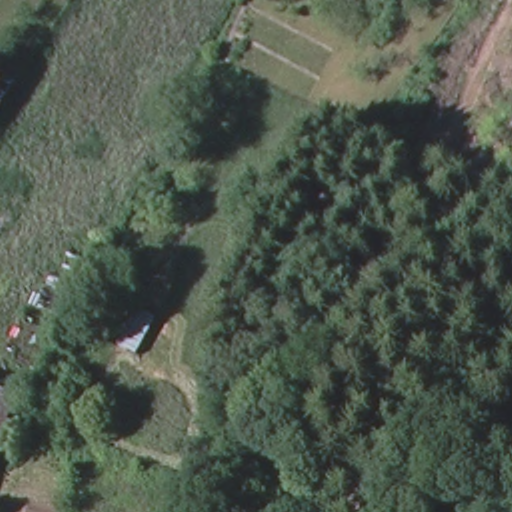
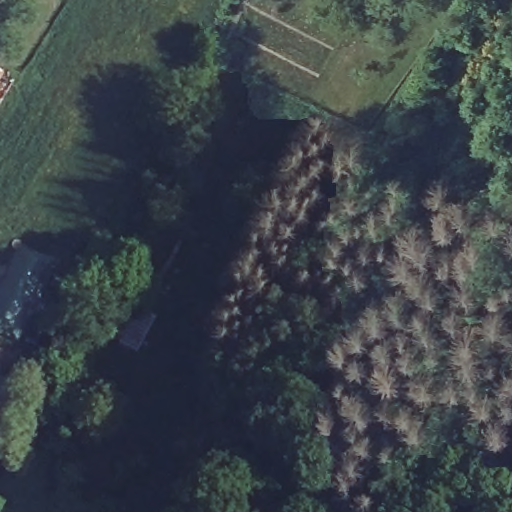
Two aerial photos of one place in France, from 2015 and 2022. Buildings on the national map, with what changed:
unchanged [(0,89),(0,76),(6,79),(0,89)]
unchanged [(159,313),(137,355),(114,345),(138,303),(159,313)]
unchanged [(0,424),(0,391),(12,396),(0,424)]

